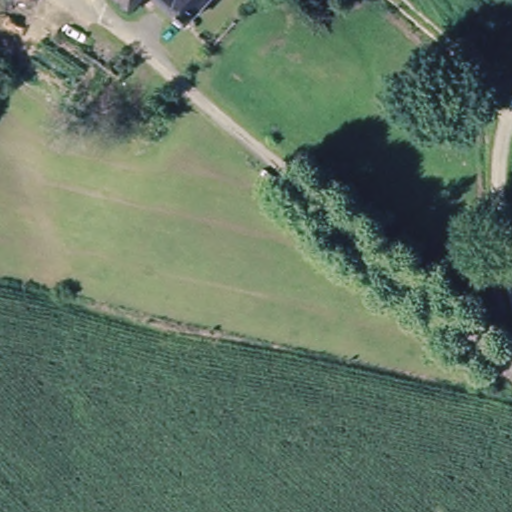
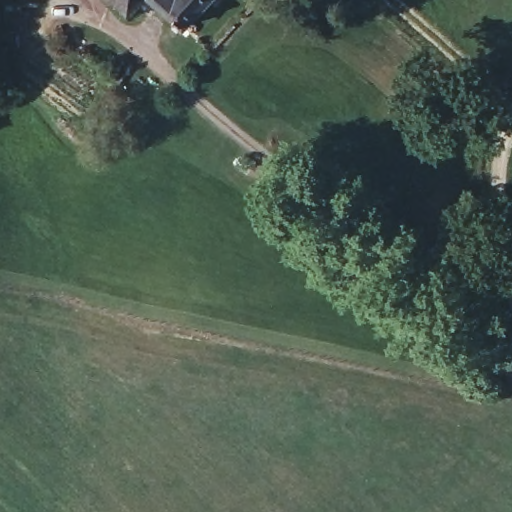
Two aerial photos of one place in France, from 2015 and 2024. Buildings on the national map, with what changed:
unchanged [(36,10),(5,2),(5,0),(38,0),(36,10)]
unchanged [(124,20),(103,0),(146,0),(124,20)]
unchanged [(180,31),(150,0),(211,0),(180,31)]

